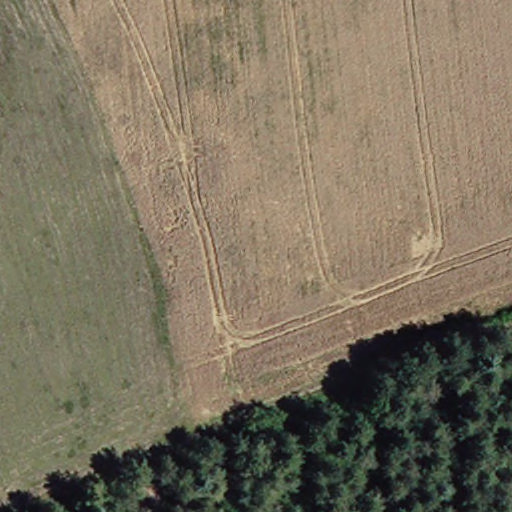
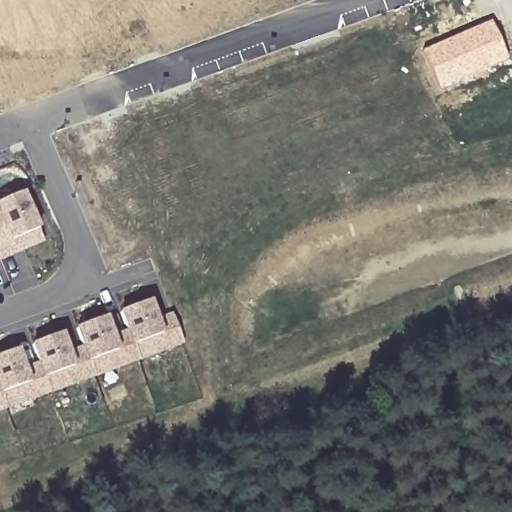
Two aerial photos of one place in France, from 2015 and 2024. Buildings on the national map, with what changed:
new [(505,61),(436,91),(420,52),(489,23),(505,61)]
new [(51,240),(0,260),(0,205),(30,193),(51,240)]
new [(189,347),(0,414),(0,358),(26,350),(32,367),(43,363),(37,346),(71,335),(78,351),(88,348),(82,331),(115,318),(123,336),(133,332),(125,314),(159,302),(166,319),(177,316),(189,347)]

